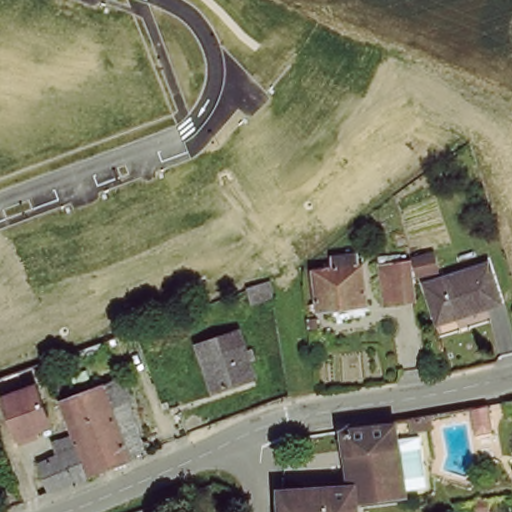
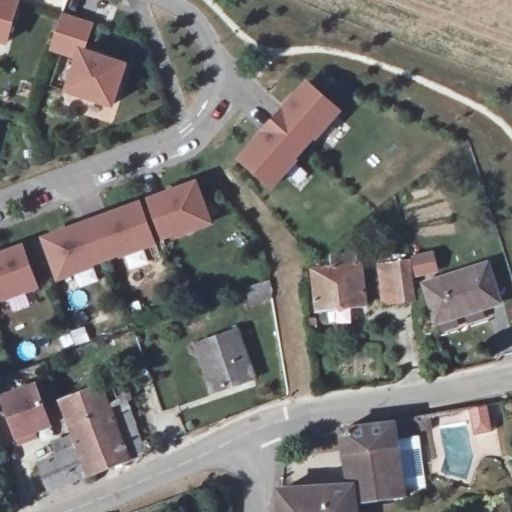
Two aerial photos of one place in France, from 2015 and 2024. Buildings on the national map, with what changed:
new [(8,45),(0,43),(0,0),(22,0),(8,45)]
new [(85,49),(130,65),(115,109),(65,94),(75,62),(50,54),(63,14),(95,25),(85,49)]
new [(307,80),(343,112),(272,190),(238,159),(307,80)]
new [(198,181),(213,224),(163,241),(148,198),(198,181)]
new [(142,201),(157,246),(57,281),(42,237),(142,201)]
new [(40,288),(0,302),(0,253),(25,244),(40,288)]
unchanged [(421,269),(419,262),(439,257),(442,270),(423,276),(421,269)]
unchanged [(313,266),(362,261),(366,302),(316,306),(313,266)]
unchanged [(430,285),(490,262),(505,301),(445,324),(430,285)]
unchanged [(383,270),(414,267),(419,305),(388,308),(383,270)]
unchanged [(276,295),(256,302),(251,288),(274,281),(276,295)]
unchanged [(201,344),(241,331),(257,379),(217,393),(201,344)]
unchanged [(75,431),(61,397),(122,372),(130,397),(128,397),(110,404),(130,457),(111,463),(96,468),(67,481),(50,488),(42,466),(39,460),(53,453),(59,451),(55,440),(75,431)]
unchanged [(2,397),(35,386),(48,427),(32,432),(33,438),(18,443),(2,397)]
unchanged [(110,404),(128,397),(144,440),(148,450),(130,457),(110,404)]
unchanged [(350,477),(343,421),(351,420),(373,417),(391,415),(398,413),(410,485),(357,488),(358,512),(282,512),(281,482),(350,477)]

